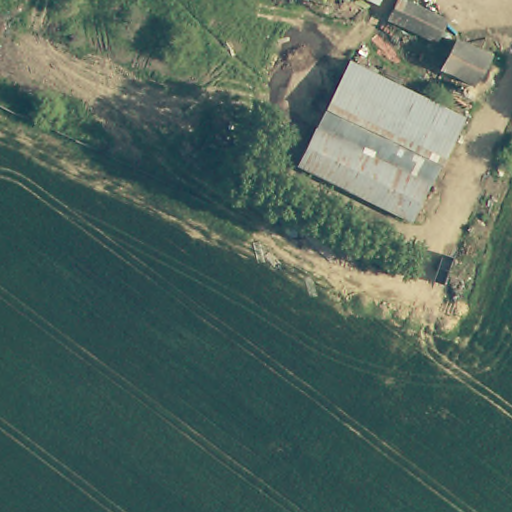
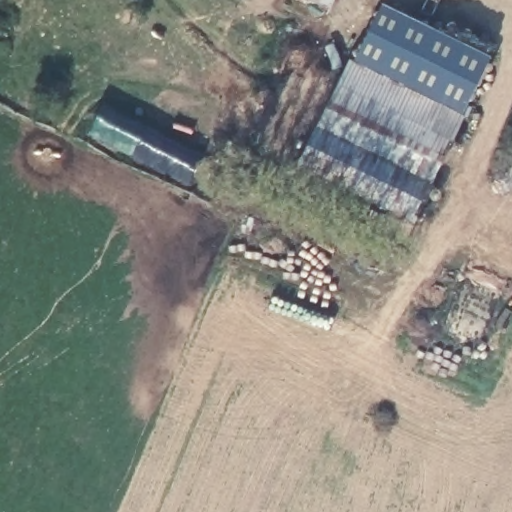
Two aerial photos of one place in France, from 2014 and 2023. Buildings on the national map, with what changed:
unchanged [(337,0),(379,0),(372,15),(337,0)]
new [(381,5),(488,59),(459,114),(354,62),(381,5)]
demolished [(472,71),(464,87),(439,75),(462,29),(496,46),(483,75),(472,71)]
unchanged [(463,115),(430,183),(317,126),(350,60),(463,115)]
unchanged [(298,166),(317,126),(430,183),(411,221),(298,166)]

